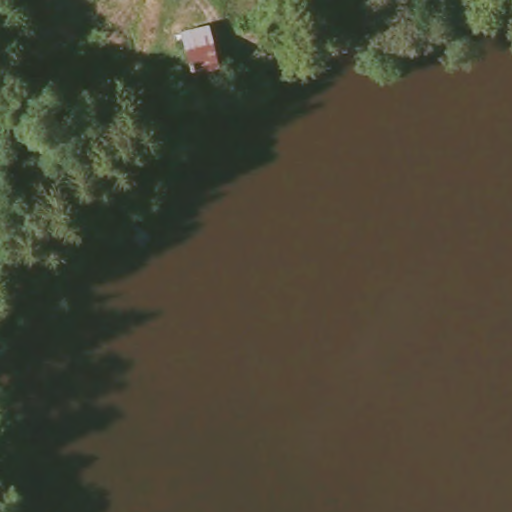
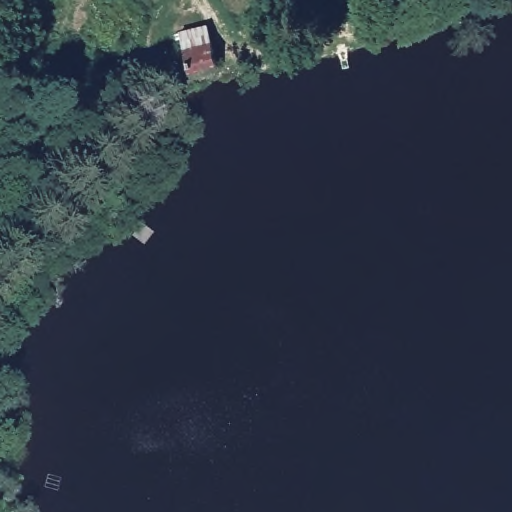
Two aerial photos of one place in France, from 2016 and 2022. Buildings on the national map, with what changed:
unchanged [(217,57),(188,65),(181,39),(210,32),(217,57)]

